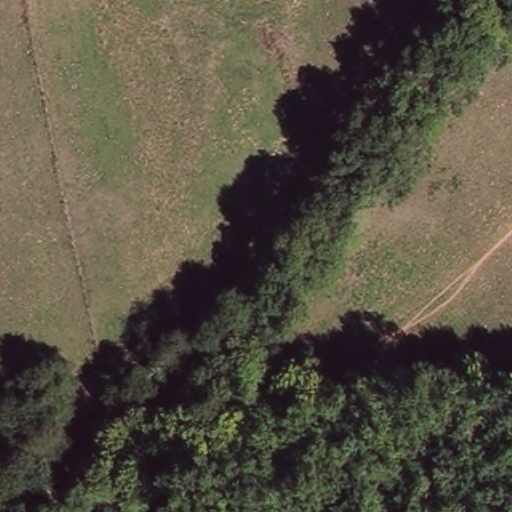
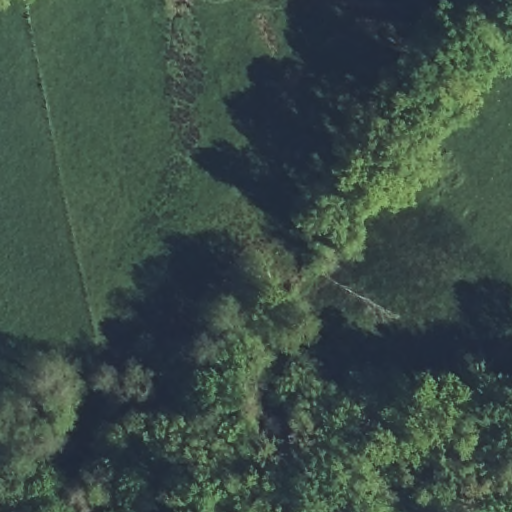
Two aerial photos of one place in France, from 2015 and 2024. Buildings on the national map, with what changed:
[]

